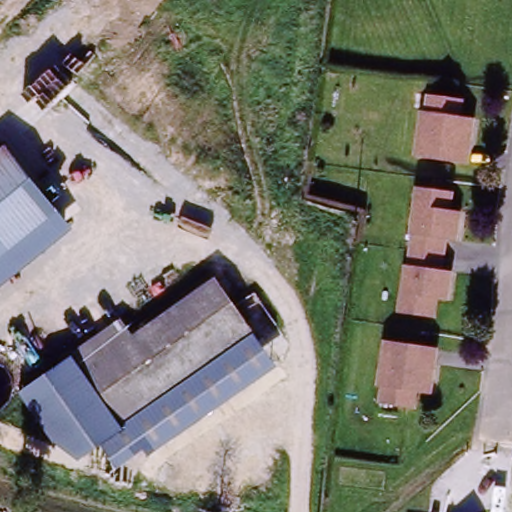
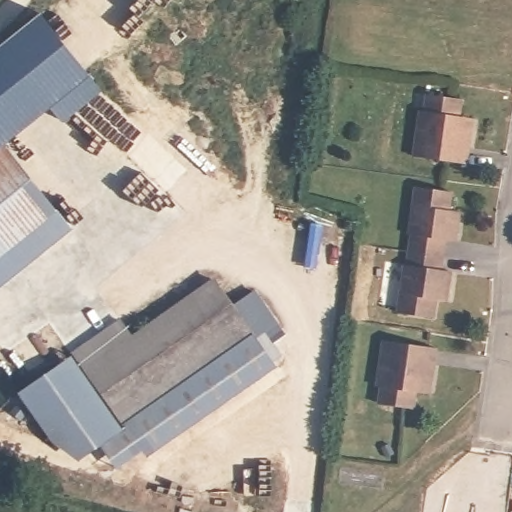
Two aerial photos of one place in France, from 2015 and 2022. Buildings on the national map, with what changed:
new [(64,124),(53,108),(1,148),(0,149),(0,47),(41,15),(105,92),(64,124)]
unchanged [(464,165),(412,159),(416,131),(418,112),(423,112),(425,98),(457,102),(456,117),(470,118),(468,131),(467,143),(464,165)]
unchanged [(63,229),(0,280),(0,149),(1,148),(63,229)]
unchanged [(395,315),(402,266),(405,266),(406,252),(408,236),(405,236),(406,230),(411,231),(414,191),(448,192),(448,212),(457,212),(453,242),(443,239),(440,258),(438,271),(450,272),(446,293),(445,303),(435,302),(432,320),(395,315)]
unchanged [(71,360),(67,355),(118,322),(125,328),(145,315),(150,318),(211,278),(273,367),(116,477),(100,461),(75,480),(15,397),(71,360)]
unchanged [(415,395),(413,409),(380,405),(381,391),(377,390),(384,342),(435,350),(430,385),(428,397),(415,395)]

